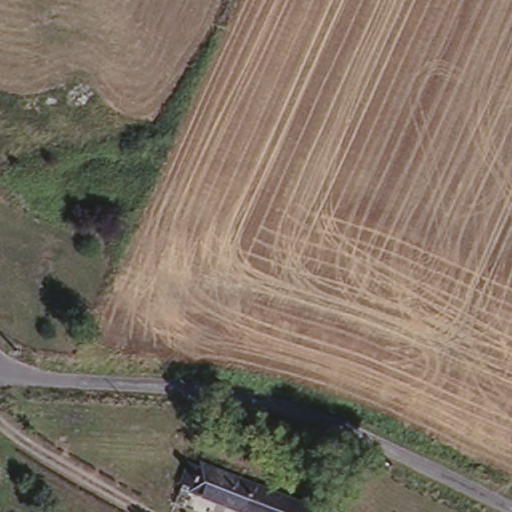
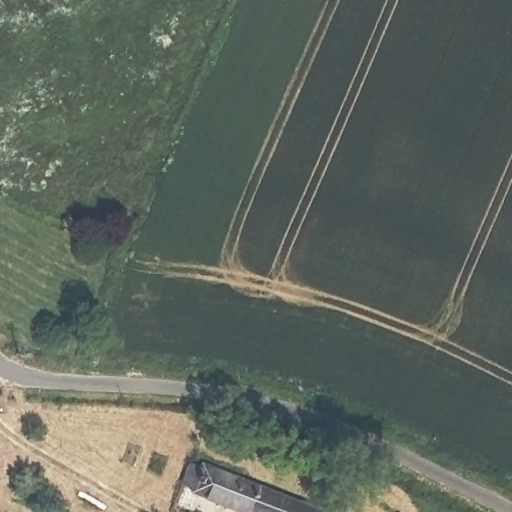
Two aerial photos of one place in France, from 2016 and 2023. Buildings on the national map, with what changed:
unchanged [(207,459),(334,511),(334,512),(242,512),(195,492),(197,487),(181,482),(191,459),(205,465),(207,459)]

